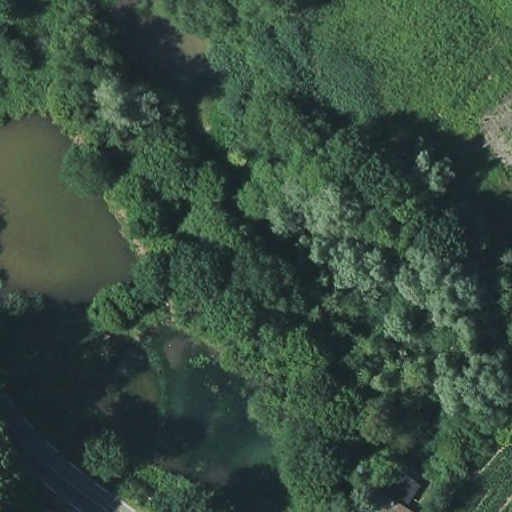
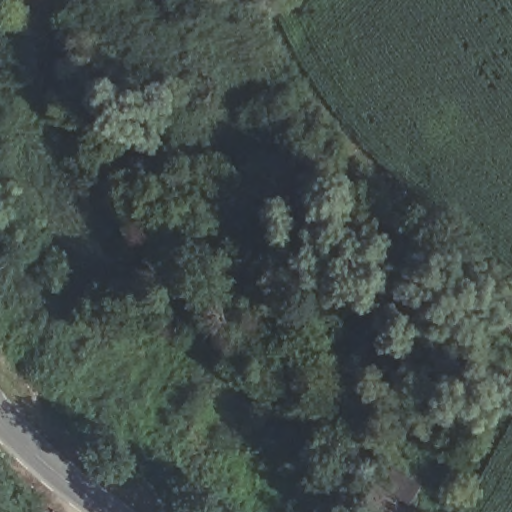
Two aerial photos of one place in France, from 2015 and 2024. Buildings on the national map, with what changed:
unchanged [(387,478),(392,464),(425,485),(410,510),(412,512),(361,512),(375,472),(387,478)]

